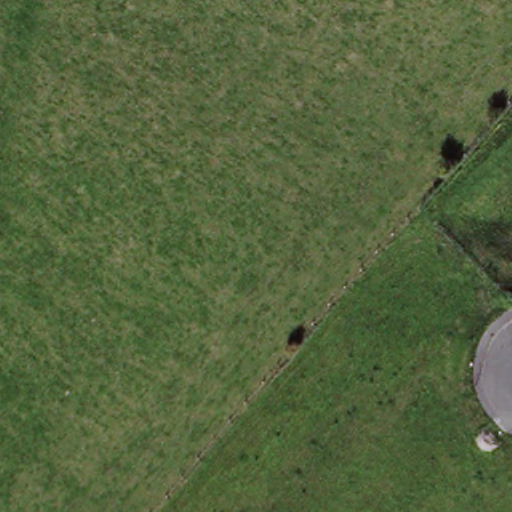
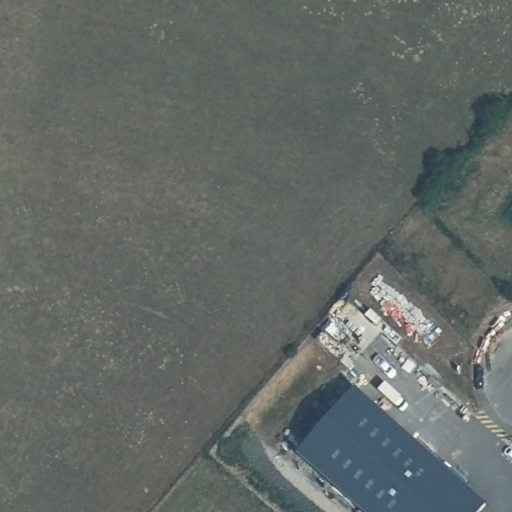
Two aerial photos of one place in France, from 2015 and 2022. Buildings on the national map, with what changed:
new [(359,395),(376,411),(320,475),(301,458),(359,395)]
new [(376,411),(489,512),(362,512),(320,475),(376,411)]

